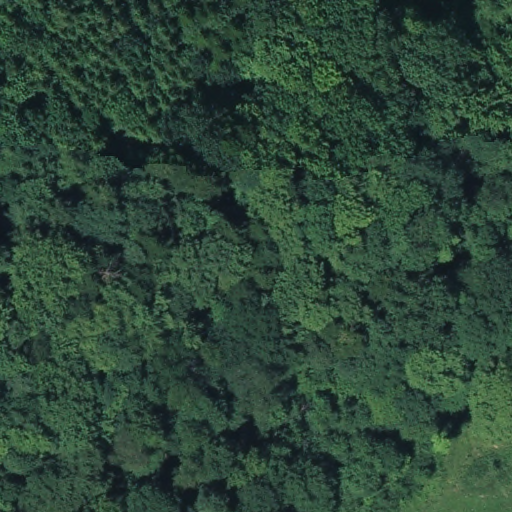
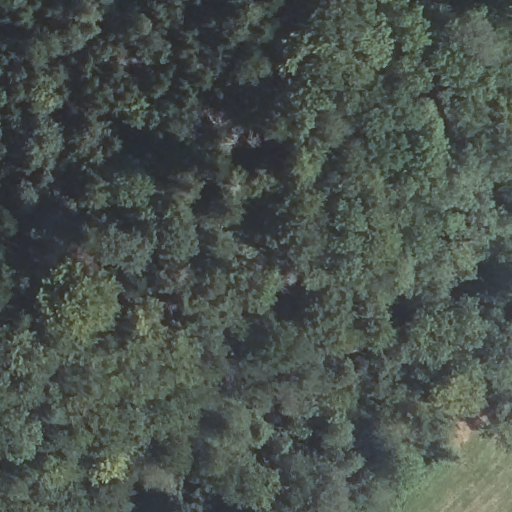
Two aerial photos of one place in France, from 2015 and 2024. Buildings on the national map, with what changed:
unchanged [(240,215),(247,241),(218,260),(210,211),(240,215)]

